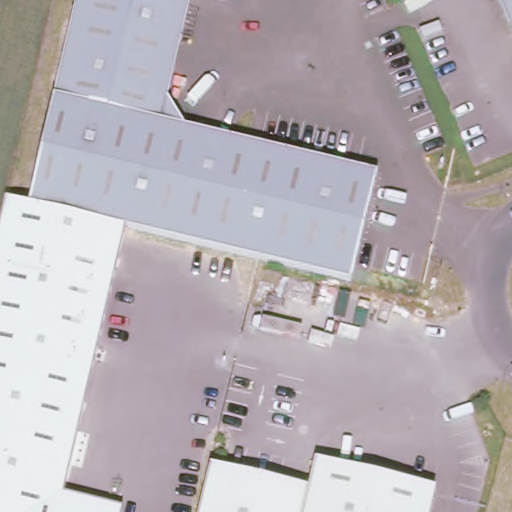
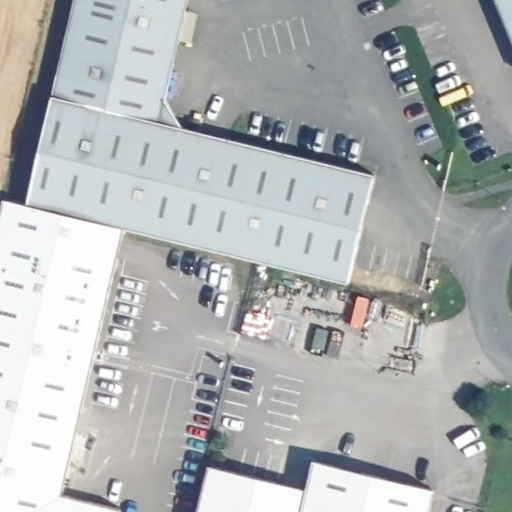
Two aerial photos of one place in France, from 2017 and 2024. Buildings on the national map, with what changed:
unchanged [(163,104),(139,119),(51,98),(74,0),(187,0),(163,101),(163,104)]
unchanged [(499,0),(512,0),(512,32),(499,0)]
unchanged [(332,277),(120,234),(27,206),(51,98),(139,119),(163,104),(178,128),(357,170),(332,277)]
unchanged [(332,277),(357,170),(374,174),(348,281),(332,277)]
unchanged [(0,204),(1,200),(27,206),(120,234),(60,497),(121,509),(120,512),(0,512),(0,204)]
unchanged [(435,492),(430,512),(197,512),(208,467),(306,489),(312,463),(435,492)]

